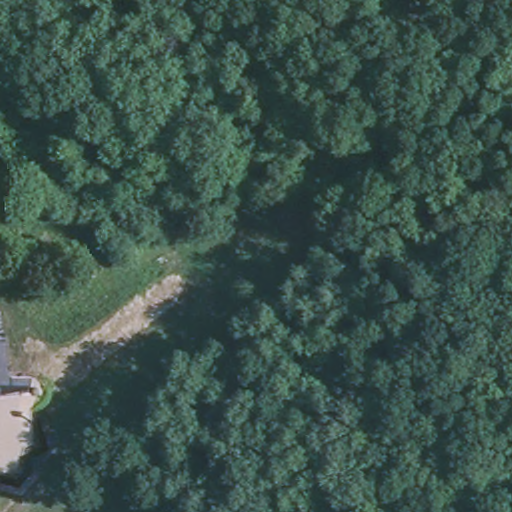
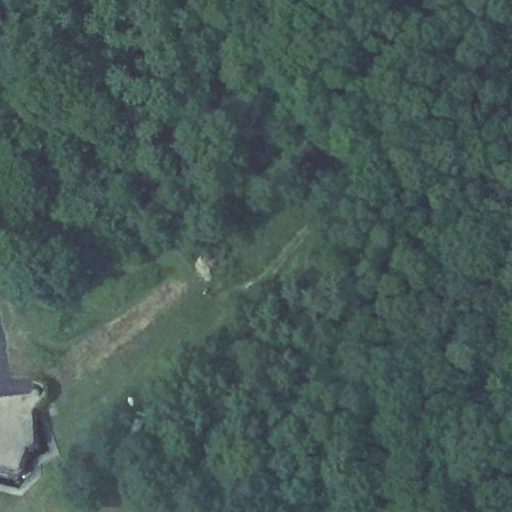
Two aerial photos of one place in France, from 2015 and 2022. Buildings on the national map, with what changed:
unchanged [(33,407),(23,480),(0,474),(0,388),(42,386),(49,407),(33,407)]

